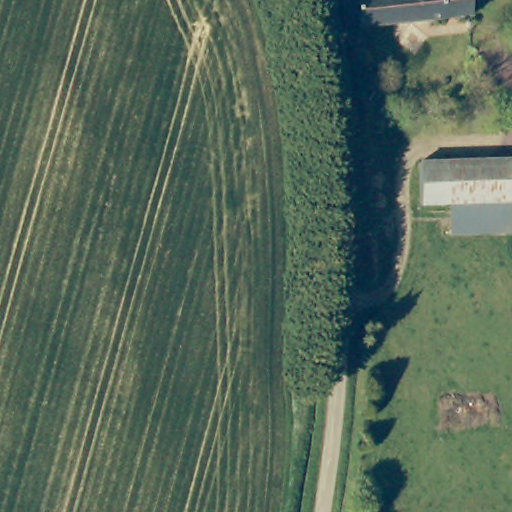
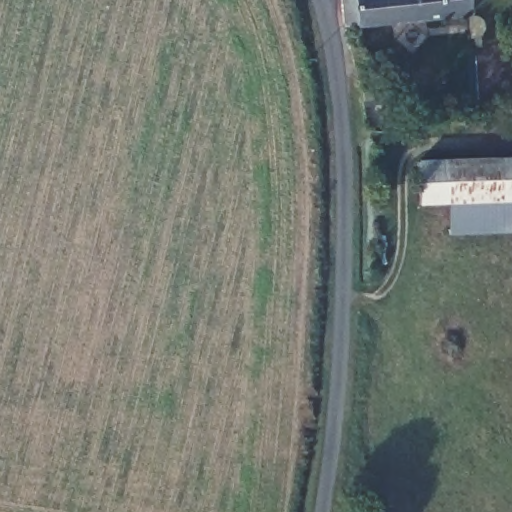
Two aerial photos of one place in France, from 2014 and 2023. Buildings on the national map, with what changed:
unchanged [(346,22),(342,0),(464,0),(464,14),(346,22)]
unchanged [(512,206),(443,209),(417,210),(415,161),(512,157),(512,206)]
unchanged [(443,209),(512,206),(512,239),(445,242),(443,209)]

